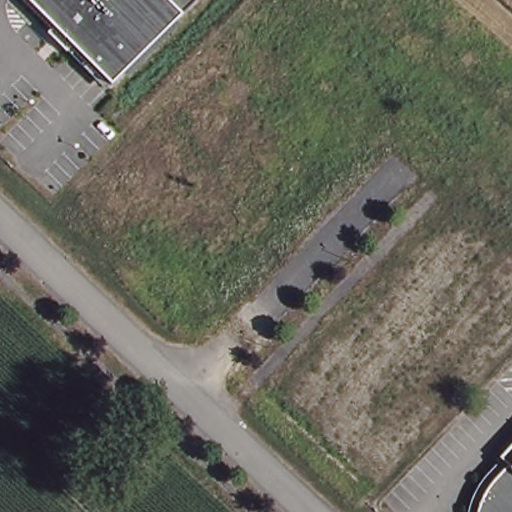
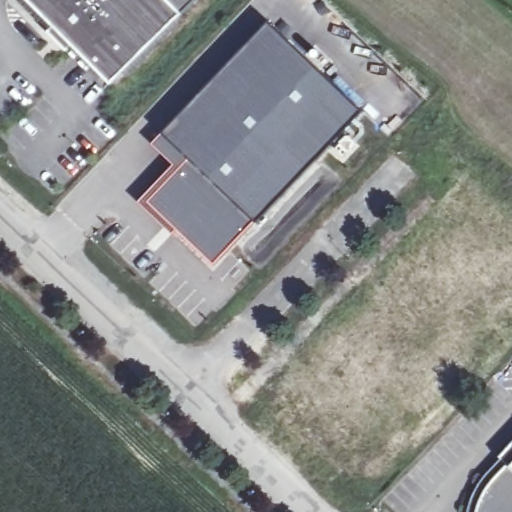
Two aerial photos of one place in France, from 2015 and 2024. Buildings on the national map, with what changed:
unchanged [(181,19),(111,88),(24,0),(199,0),(181,19)]
new [(270,25),(358,111),(208,265),(141,201),(172,165),(153,147),(270,25)]
unchanged [(480,480),(490,467),(484,461),(512,429),(512,512),(464,512),(468,498),(480,480)]

